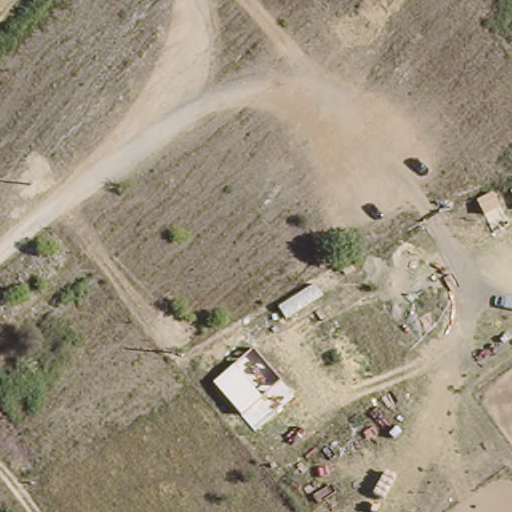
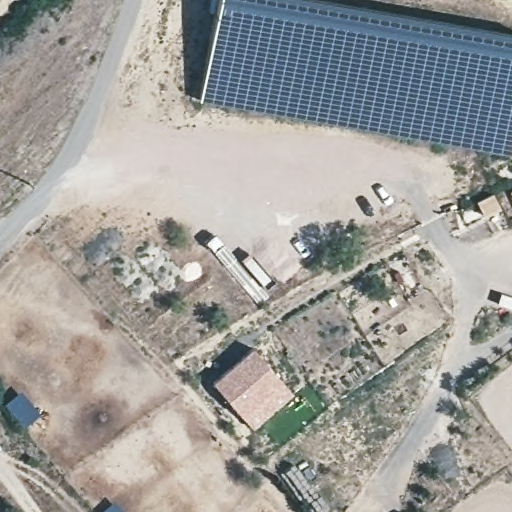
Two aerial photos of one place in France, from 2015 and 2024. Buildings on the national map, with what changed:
new [(217,0),(321,0),(512,33),(512,154),(199,100),(217,0)]
unchanged [(251,351),(287,397),(245,432),(208,386),(251,351)]

